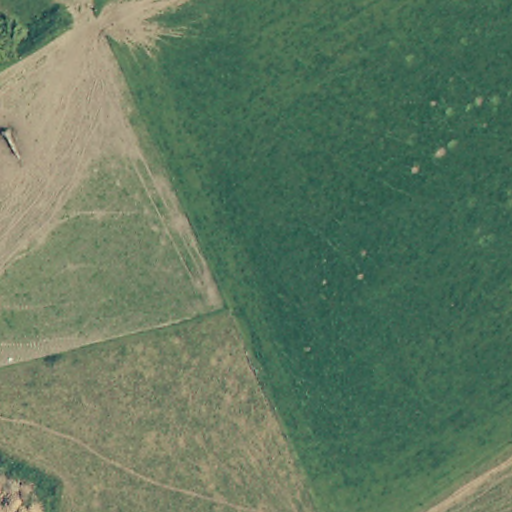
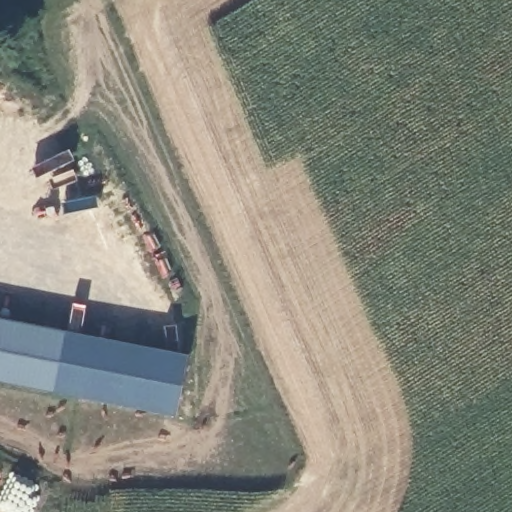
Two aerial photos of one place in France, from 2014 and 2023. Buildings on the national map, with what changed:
new [(170,411),(0,379),(0,319),(178,355),(170,411)]

